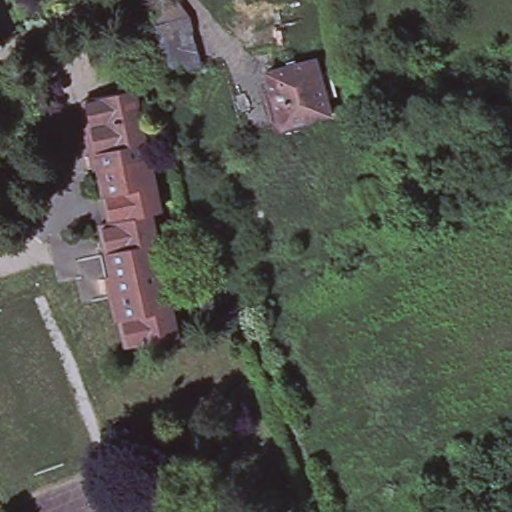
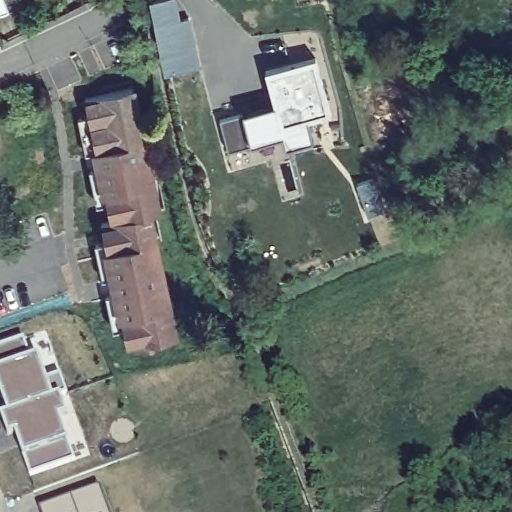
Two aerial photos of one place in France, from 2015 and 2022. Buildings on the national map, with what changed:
unchanged [(164,72),(148,0),(183,0),(197,67),(164,72)]
unchanged [(275,129),(263,90),(271,87),(265,67),(313,55),(328,108),(301,116),(302,122),(275,129)]
unchanged [(150,210),(116,216),(107,177),(105,163),(97,165),(87,124),(95,122),(89,94),(135,85),(150,154),(153,168),(160,207),(150,210)]
unchanged [(383,211),(370,217),(356,184),(370,178),(383,211)]
unchanged [(125,326),(122,312),(115,314),(107,272),(115,271),(108,234),(105,217),(116,216),(150,210),(173,331),(133,339),(127,339),(125,326)]
new [(21,338),(28,357),(35,355),(44,378),(58,373),(65,393),(58,396),(58,395),(8,413),(1,395),(8,392),(0,370),(0,346),(21,338)]
new [(7,434),(1,416),(8,413),(58,395),(58,396),(65,413),(57,416),(73,459),(30,475),(22,455),(15,432),(7,434)]
new [(99,484),(109,512),(41,512),(38,507),(99,484)]

